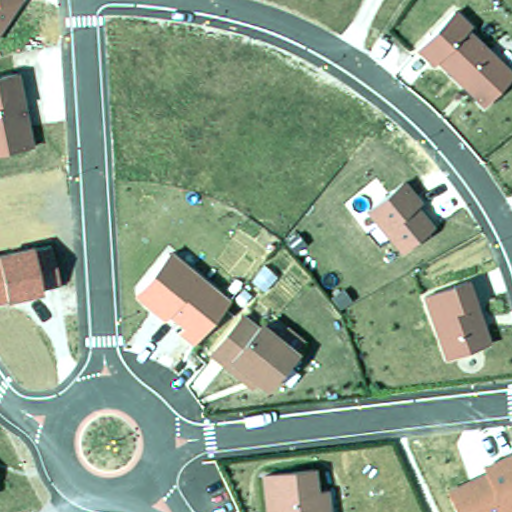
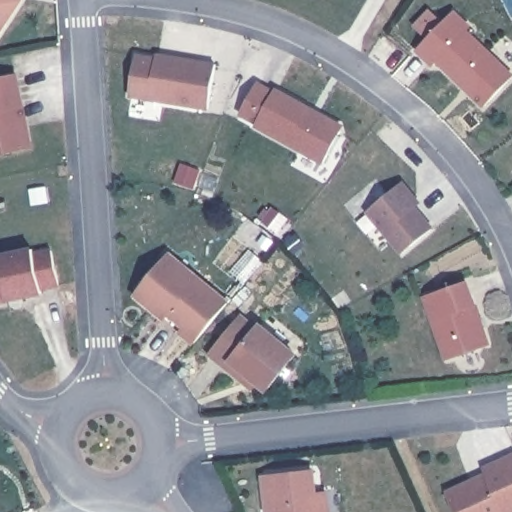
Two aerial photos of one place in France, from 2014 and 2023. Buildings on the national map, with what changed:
unchanged [(0,32),(0,0),(23,0),(0,32)]
unchanged [(437,66),(433,70),(417,55),(453,17),(469,33),(466,36),(512,81),(484,111),(469,97),(462,90),(437,66)]
new [(216,62),(209,110),(130,97),(136,56),(156,59),(158,52),(216,62)]
unchanged [(0,160),(0,83),(21,79),(27,111),(31,132),(35,153),(0,160)]
new [(276,87),(345,124),(323,163),(255,127),(258,123),(240,114),(259,82),(275,90),(276,87)]
unchanged [(424,202),(418,208),(435,227),(402,255),(368,212),(405,181),(424,202)]
unchanged [(60,282),(44,287),(45,297),(0,304),(0,253),(53,245),(60,282)]
unchanged [(145,303),(144,294),(173,259),(232,308),(199,348),(186,337),(190,332),(174,319),(170,324),(157,313),(145,303)]
unchanged [(424,297),(466,282),(489,345),(446,360),(424,297)]
unchanged [(250,387),(215,359),(246,322),(261,335),(264,331),(266,332),(275,321),(308,347),(298,359),(300,360),(272,395),(262,387),(257,392),(250,387)]
unchanged [(448,512),(442,498),(465,487),(481,480),(479,474),(512,459),(512,512),(448,512)]
unchanged [(313,475),(316,499),(325,498),(327,512),(267,512),(263,481),(313,475)]

